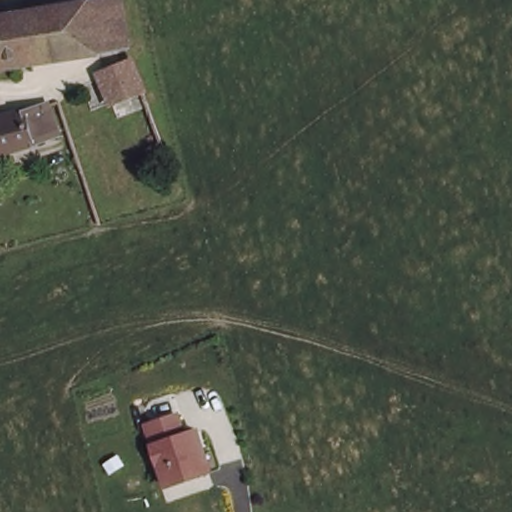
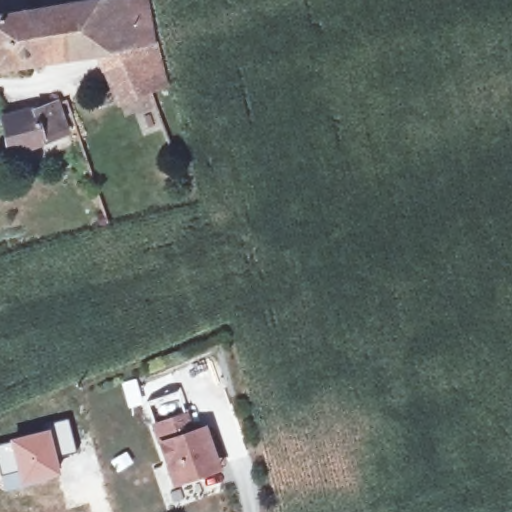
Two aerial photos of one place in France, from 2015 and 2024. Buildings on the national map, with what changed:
unchanged [(96,6),(125,1),(136,47),(104,56),(96,6)]
unchanged [(51,12),(96,6),(104,56),(0,72),(0,20),(51,12)]
unchanged [(115,97),(105,68),(141,56),(150,85),(115,97)]
unchanged [(25,111),(54,97),(64,127),(7,144),(1,117),(25,111)]
unchanged [(207,472),(176,482),(156,422),(187,411),(194,431),(207,427),(216,455),(220,467),(207,472)]
new [(53,427),(52,422),(68,418),(76,451),(57,456),(60,474),(22,487),(5,492),(0,471),(0,442),(9,439),(50,428),(53,427)]

